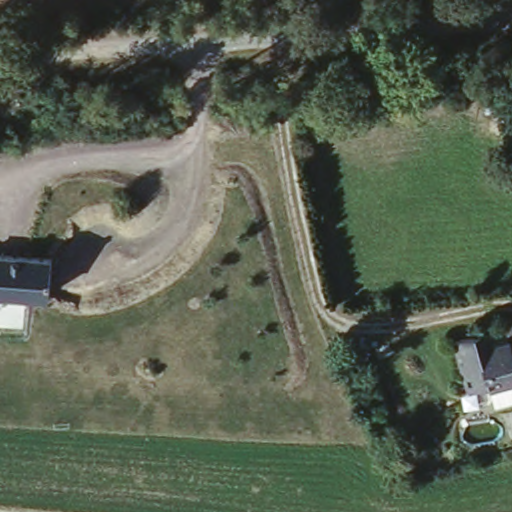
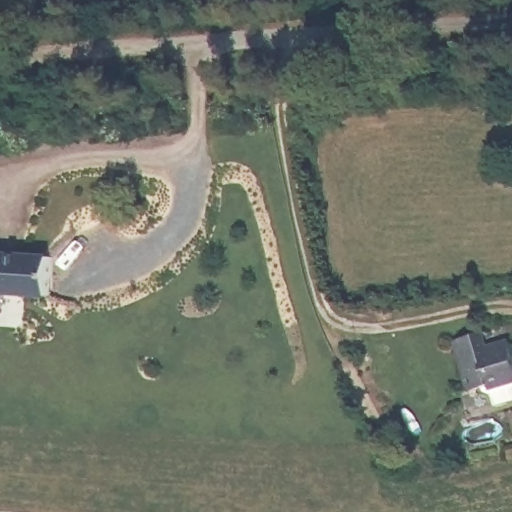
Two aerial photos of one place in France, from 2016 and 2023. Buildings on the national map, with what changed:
unchanged [(50,256),(48,302),(0,301),(0,255),(50,256)]
unchanged [(480,353),(510,340),(512,344),(512,385),(492,392),(487,380),(468,388),(450,342),(471,335),(480,353)]

